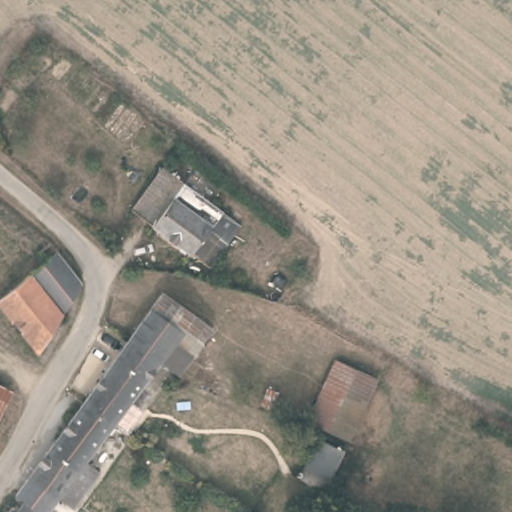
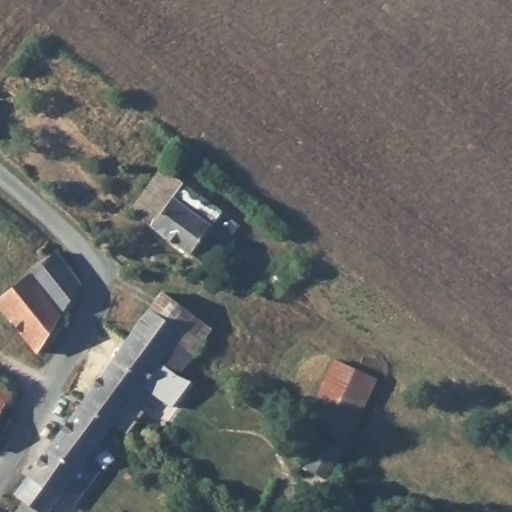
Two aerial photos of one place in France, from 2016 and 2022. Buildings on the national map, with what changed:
unchanged [(236,231),(225,251),(186,222),(170,242),(132,213),(160,174),(236,231)]
unchanged [(88,220),(104,236),(93,246),(77,230),(88,220)]
unchanged [(77,292),(35,362),(0,317),(0,301),(65,264),(77,292)]
unchanged [(164,298),(213,335),(175,378),(173,377),(156,366),(129,343),(164,298)]
unchanged [(129,343),(156,366),(110,426),(83,405),(129,343)]
unchanged [(374,387),(345,447),(303,427),(332,367),(374,387)]
unchanged [(263,404),(252,400),(260,383),(270,388),(263,404)]
unchanged [(0,422),(0,390),(12,397),(0,422)]
unchanged [(29,501),(17,492),(83,405),(110,426),(80,466),(96,478),(71,512),(63,512),(52,505),(46,512),(21,512),(29,501)]

